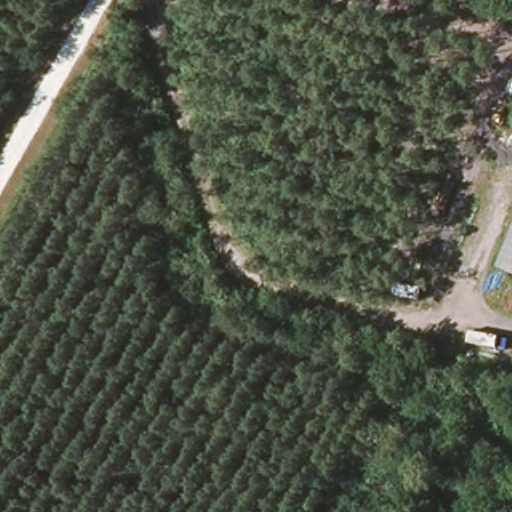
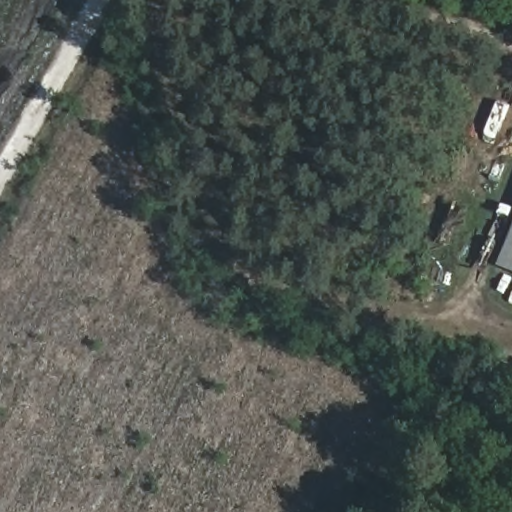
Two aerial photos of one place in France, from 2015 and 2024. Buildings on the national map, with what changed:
unchanged [(512,238),(512,270),(501,265),(512,238)]

